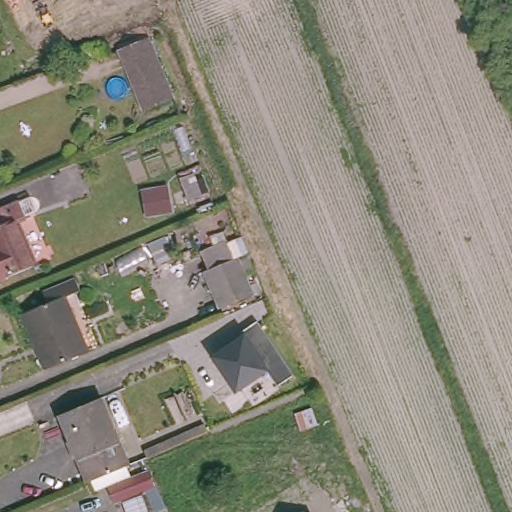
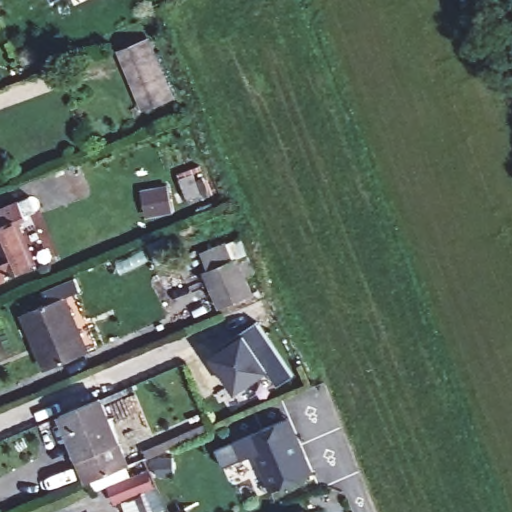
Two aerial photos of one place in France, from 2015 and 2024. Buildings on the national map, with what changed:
new [(53,4),(53,5),(50,0),(58,0),(53,3),(53,4)]
unchanged [(116,37),(146,24),(168,80),(179,102),(148,114),(140,93),(116,37)]
unchanged [(193,179),(202,202),(189,207),(180,185),(193,179)]
unchanged [(37,190),(42,204),(20,213),(39,259),(0,275),(0,205),(37,190)]
unchanged [(223,305),(208,269),(201,252),(232,239),(239,255),(254,292),(223,305)]
unchanged [(63,294),(86,350),(48,365),(39,340),(35,342),(22,312),(63,294)]
unchanged [(294,374),(279,384),(269,371),(237,394),(208,354),(258,321),(294,374)]
unchanged [(65,411),(103,397),(129,463),(91,479),(65,411)]
demolished [(304,415),(309,430),(294,434),(289,419),(304,415)]
new [(314,472),(271,491),(255,454),(242,459),(234,443),(291,416),(314,472)]
unchanged [(139,453),(201,428),(204,434),(143,460),(139,453)]
unchanged [(113,502),(108,488),(143,474),(146,479),(150,487),(113,502)]

